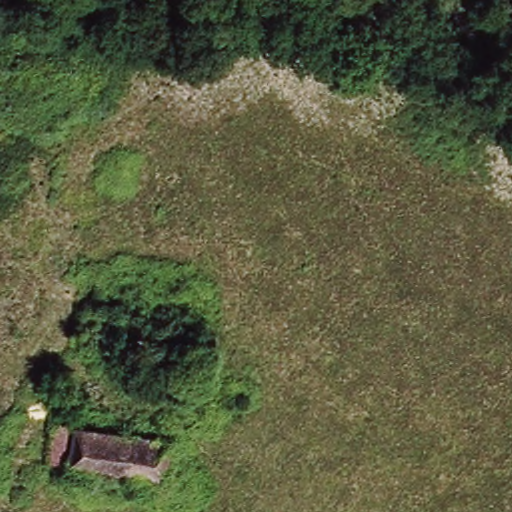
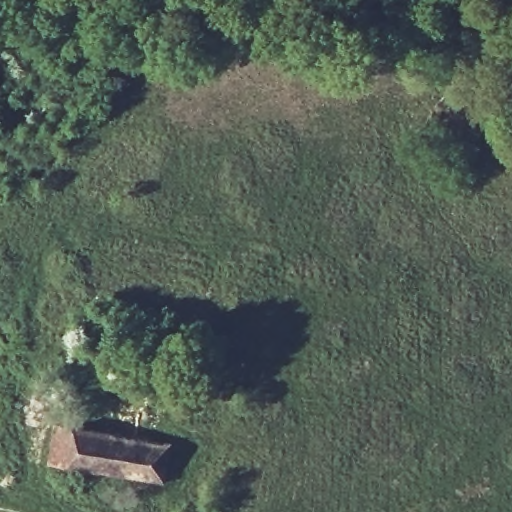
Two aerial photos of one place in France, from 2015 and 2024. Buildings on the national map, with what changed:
unchanged [(71,472),(69,476),(47,472),(52,429),(174,445),(167,484),(71,472)]

